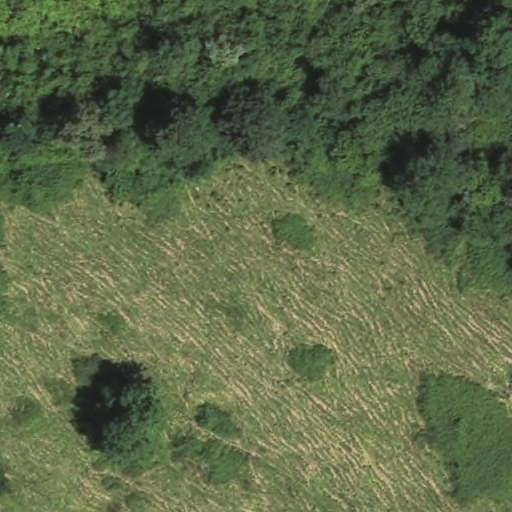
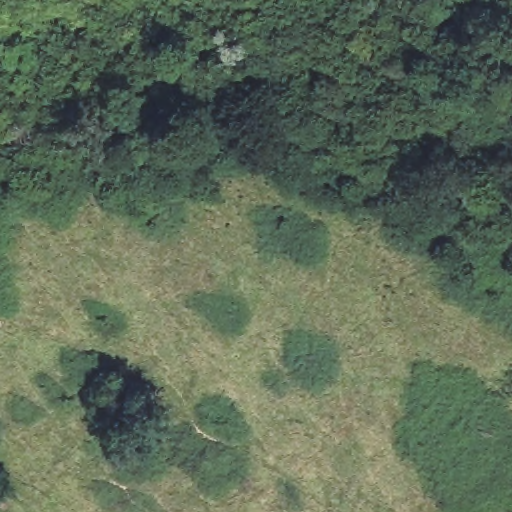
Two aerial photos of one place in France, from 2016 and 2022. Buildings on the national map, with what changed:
[]

